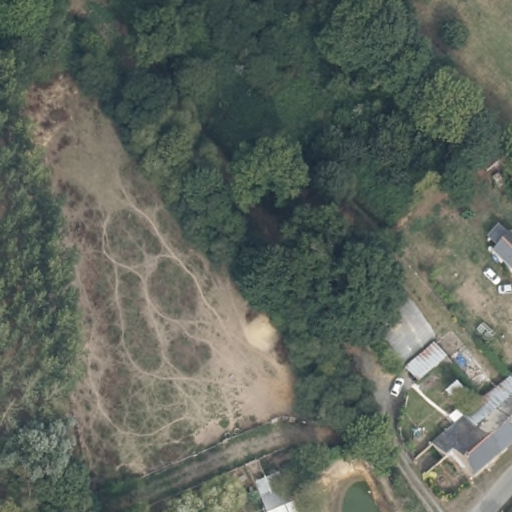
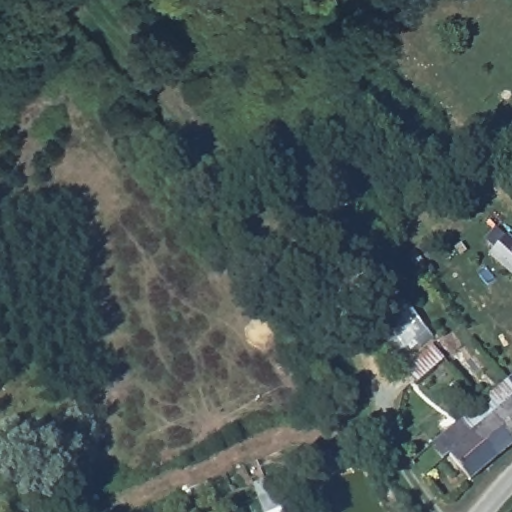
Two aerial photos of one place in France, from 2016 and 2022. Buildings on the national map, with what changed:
unchanged [(437,445),(451,432),(445,425),(454,416),(498,377),(504,384),(512,393),(512,448),(472,482),(450,462),(437,445)]
unchanged [(504,384),(512,377),(512,393),(504,384)]

